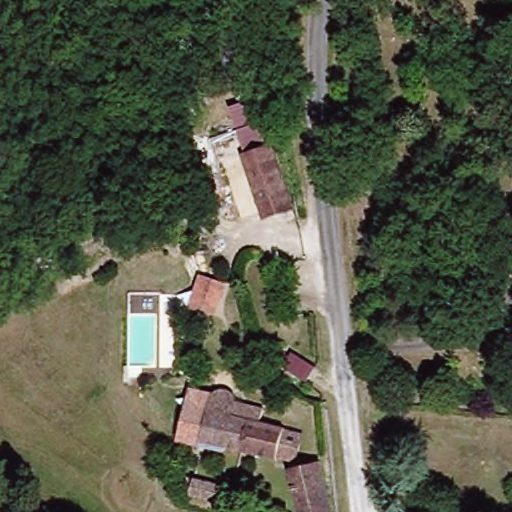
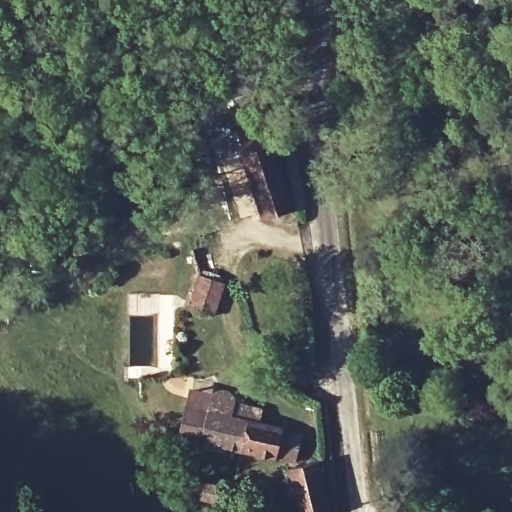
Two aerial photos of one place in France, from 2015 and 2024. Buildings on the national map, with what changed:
unchanged [(267,98),(301,211),(259,220),(230,109),(267,98)]
unchanged [(226,287),(214,318),(186,310),(199,277),(226,287)]
unchanged [(236,416),(260,422),(256,436),(277,441),(278,443),(296,447),(290,469),(273,465),(272,466),(201,451),(210,412),(215,408),(221,407),(232,409),(236,416)]
unchanged [(286,479),(314,472),(324,512),(294,512),(286,479)]
unchanged [(189,496),(192,477),(219,483),(215,501),(189,496)]

